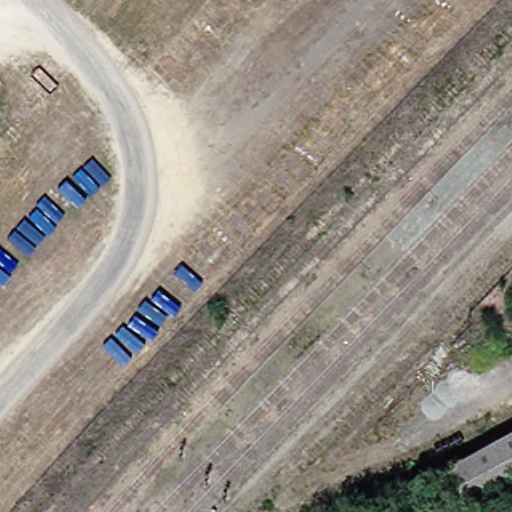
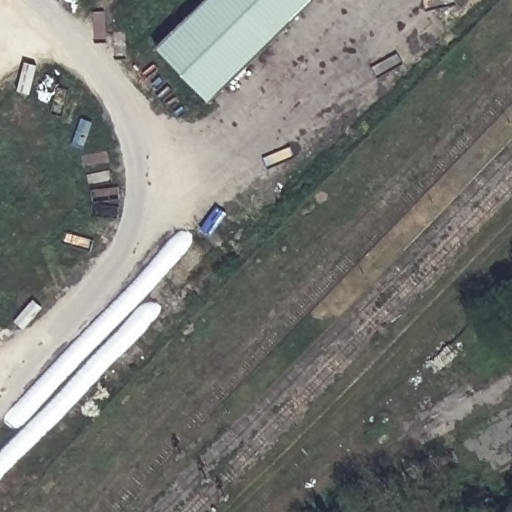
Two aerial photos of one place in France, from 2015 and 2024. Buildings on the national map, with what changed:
new [(212,105),(158,51),(209,0),(317,0),(212,105)]
unchanged [(447,464),(512,427),(512,474),(462,498),(447,464)]

